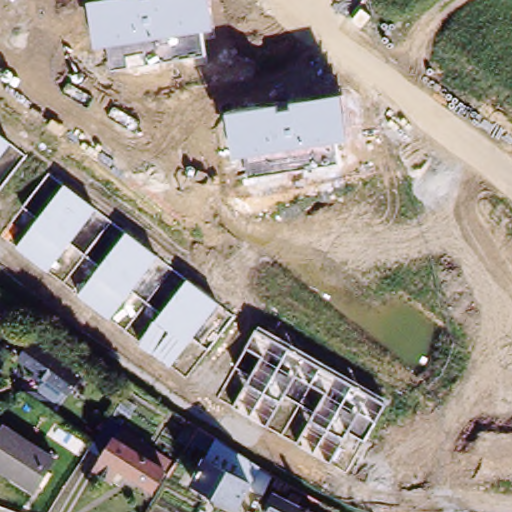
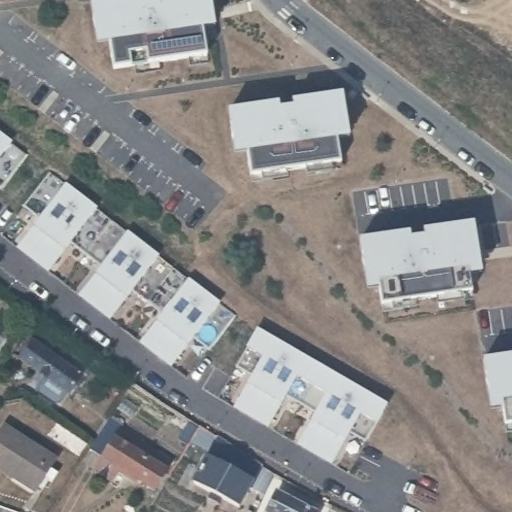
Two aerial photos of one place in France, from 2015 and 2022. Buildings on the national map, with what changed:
unchanged [(102,0),(211,0),(215,30),(202,33),(206,56),(112,68),(109,47),(98,48),(90,2),(102,0)]
unchanged [(341,94),(348,140),(336,142),(340,162),(250,177),(248,156),(235,158),(228,114),(341,94)]
unchanged [(1,189),(0,188),(0,136),(26,157),(1,189)]
unchanged [(208,350),(194,340),(171,367),(139,343),(160,314),(132,292),(110,321),(76,298),(100,267),(74,245),(50,273),(16,249),(39,219),(25,208),(50,173),(234,316),(208,350)]
new [(478,229),(481,250),(430,258),(427,236),(478,229)]
new [(403,262),(404,265),(415,263),(411,239),(427,236),(430,258),(468,252),(473,290),(382,303),(377,266),(403,262)]
new [(411,239),(415,263),(404,265),(403,262),(365,268),(362,246),(411,239)]
unchanged [(387,404),(364,442),(347,434),(329,463),(296,445),(313,412),(283,397),(267,428),(232,407),(250,377),(235,368),(258,325),(387,404)]
unchanged [(18,354),(39,327),(51,335),(88,363),(81,372),(67,390),(18,354)]
new [(512,381),(487,385),(484,364),(512,359),(512,381)]
new [(512,419),(505,421),(499,384),(512,382),(512,419)]
unchanged [(155,484),(137,474),(136,477),(118,466),(120,462),(103,451),(90,444),(97,433),(110,414),(122,421),(120,425),(146,441),(171,457),(155,484)]
unchanged [(29,481),(0,461),(0,421),(3,417),(50,451),(29,481)]
unchanged [(234,511),(190,487),(206,455),(212,444),(255,471),(250,480),(234,511)]
unchanged [(308,512),(261,512),(272,492),(308,512)]
unchanged [(336,508),(344,512),(334,512),(335,512),(336,508)]

